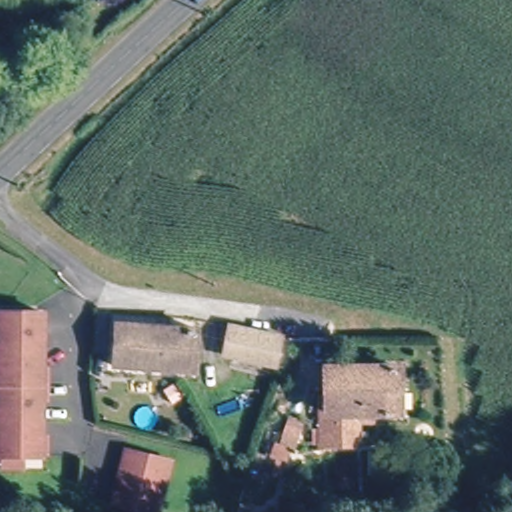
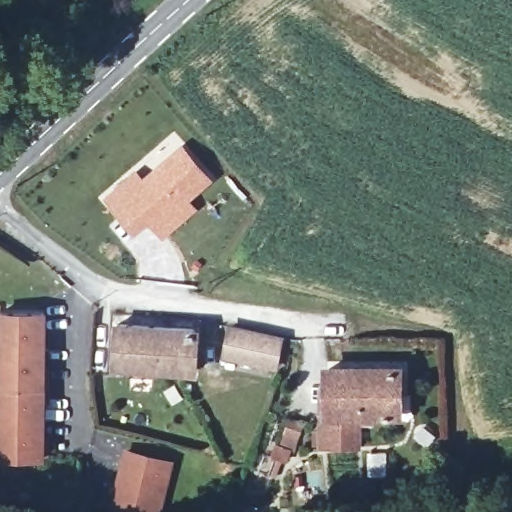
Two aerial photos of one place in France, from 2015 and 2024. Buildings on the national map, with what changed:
new [(143,178),(183,143),(215,178),(191,199),(200,210),(166,240),(150,221),(135,233),(104,199),(136,170),(143,178)]
unchanged [(43,310),(43,453),(0,453),(0,311),(43,310)]
unchanged [(230,326),(277,338),(270,369),(224,359),(230,326)]
unchanged [(194,332),(192,375),(116,372),(117,329),(194,332)]
unchanged [(403,368),(401,408),(372,407),(372,414),(357,413),(356,438),(321,436),(323,388),(330,388),(331,365),(403,368)]
unchanged [(125,449),(168,460),(156,509),(155,512),(147,512),(111,503),(113,496),(125,449)]

